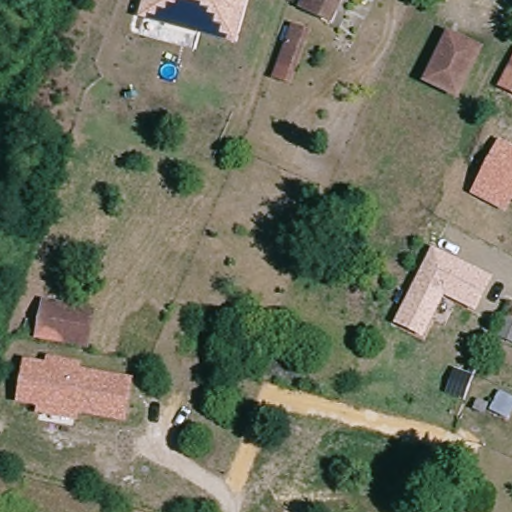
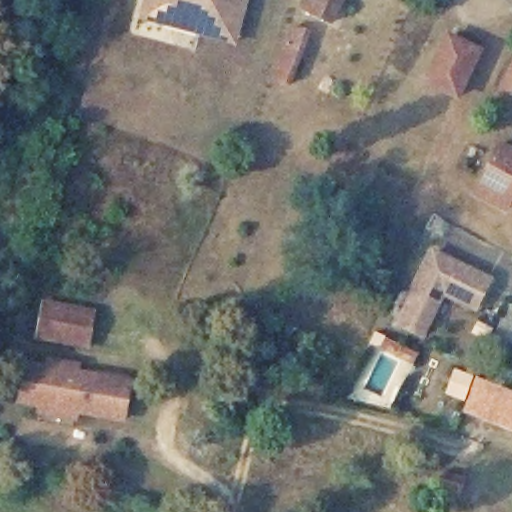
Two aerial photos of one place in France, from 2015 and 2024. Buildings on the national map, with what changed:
unchanged [(138,20),(143,0),(248,0),(236,45),(138,20)]
unchanged [(297,9),(301,0),(337,0),(327,21),(297,9)]
unchanged [(307,35),(282,83),(267,75),(289,28),(307,35)]
unchanged [(446,35),(477,51),(453,98),(422,82),(446,35)]
unchanged [(498,87),(512,61),(512,94),(498,87)]
unchanged [(499,139),(512,146),(512,203),(506,215),(470,195),(499,139)]
unchanged [(477,313),(444,297),(423,339),(393,324),(432,249),(493,279),(477,313)]
unchanged [(39,289),(70,294),(69,308),(101,314),(94,350),(44,340),(44,336),(27,333),(39,289)]
unchanged [(505,308),(512,310),(512,342),(493,334),(505,308)]
unchanged [(46,363),(46,356),(82,362),(82,368),(134,379),(125,422),(78,414),(77,421),(36,416),(37,408),(16,404),(24,361),(46,363)]
new [(462,411),(466,402),(443,394),(453,368),(477,378),(512,392),(512,431),(462,411)]

